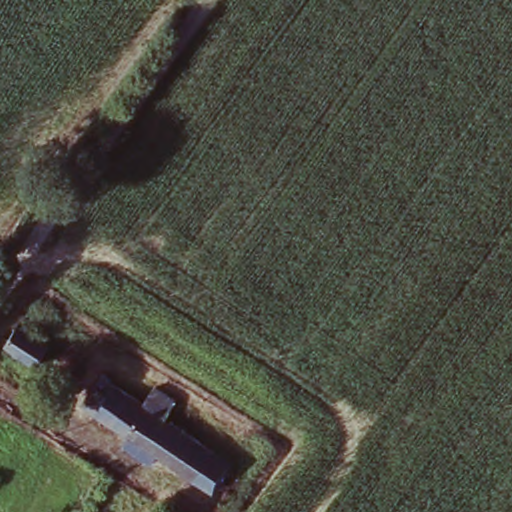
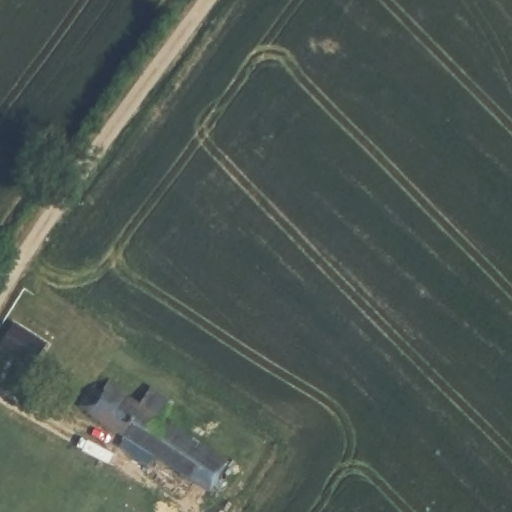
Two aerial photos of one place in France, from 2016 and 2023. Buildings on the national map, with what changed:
unchanged [(35,370),(0,346),(0,344),(13,325),(49,349),(35,370)]
unchanged [(91,416),(110,386),(147,410),(159,392),(179,404),(166,422),(230,465),(210,494),(91,416)]

